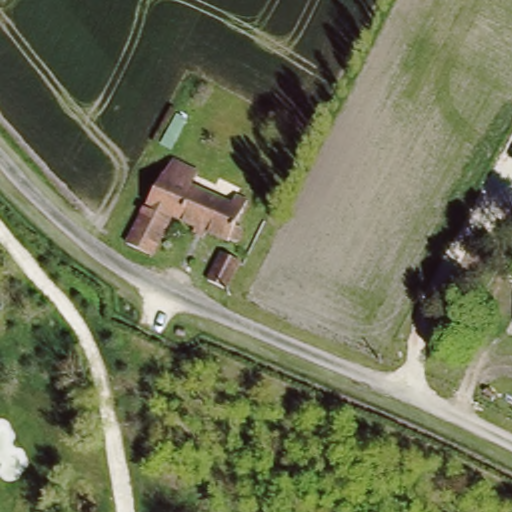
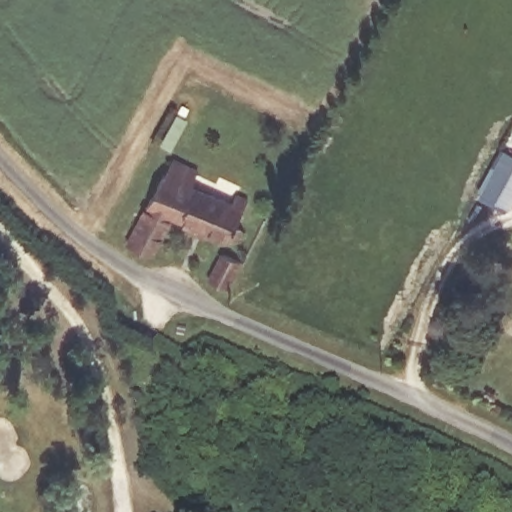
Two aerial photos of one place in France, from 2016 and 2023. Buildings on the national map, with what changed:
new [(502,152),(512,158),(512,197),(503,212),(477,198),(502,152)]
unchanged [(226,205),(233,190),(247,197),(235,220),(240,226),(237,235),(227,235),(223,241),(172,214),(152,253),(128,240),(172,157),(197,171),(189,185),(226,205)]
unchanged [(240,260),(227,287),(207,277),(220,251),(240,260)]

